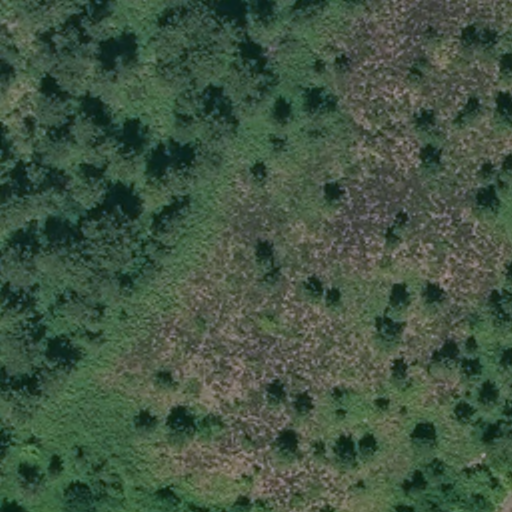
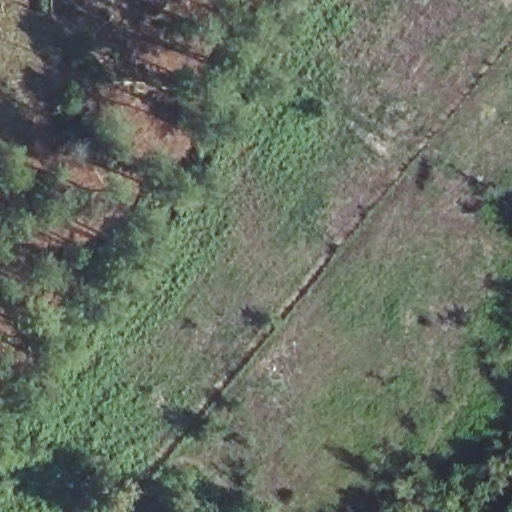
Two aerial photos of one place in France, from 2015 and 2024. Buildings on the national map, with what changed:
[]

